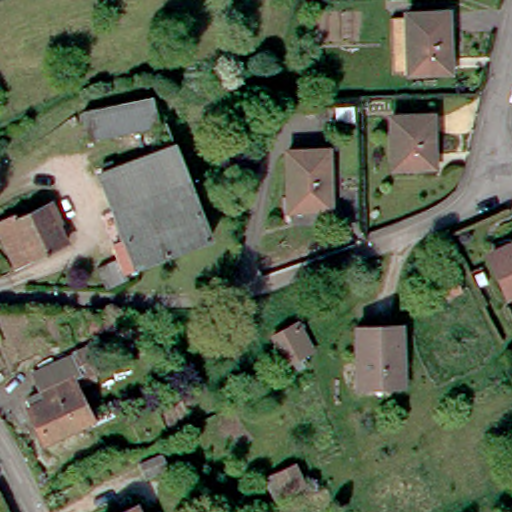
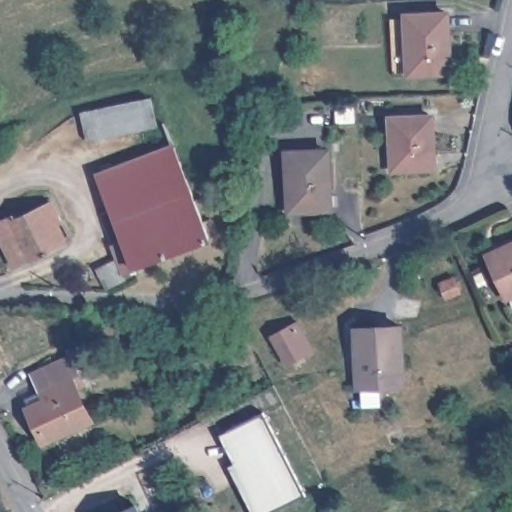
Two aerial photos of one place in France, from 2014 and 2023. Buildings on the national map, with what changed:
unchanged [(417,16),(418,13),(457,11),(460,69),(405,71),(402,16),(417,16)]
unchanged [(87,138),(81,112),(151,94),(157,119),(87,138)]
unchanged [(432,117),(434,166),(394,168),(394,119),(432,117)]
unchanged [(177,140),(192,181),(117,212),(100,170),(177,140)]
unchanged [(328,150),(330,206),(290,208),(289,152),(328,150)]
unchanged [(192,181),(202,211),(127,239),(117,212),(192,181)]
unchanged [(0,235),(0,222),(13,216),(15,219),(52,201),(60,218),(55,221),(64,242),(16,266),(0,235)]
unchanged [(202,211),(212,239),(129,273),(117,245),(127,240),(127,239),(202,211)]
unchanged [(492,272),(485,254),(512,242),(512,262),(492,272)]
unchanged [(127,280),(107,288),(100,268),(119,259),(127,280)]
unchanged [(503,296),(492,272),(512,262),(512,292),(503,296)]
unchanged [(440,298),(435,287),(451,280),(456,290),(440,298)]
unchanged [(301,314),(317,347),(287,363),(272,331),(301,314)]
unchanged [(115,321),(115,333),(89,333),(89,320),(115,321)]
unchanged [(395,327),(397,387),(354,389),(352,328),(395,327)]
unchanged [(30,404),(26,397),(40,390),(32,372),(70,355),(85,348),(92,366),(79,373),(68,378),(87,423),(45,442),(28,405),(30,404)]
new [(264,413),(303,494),(267,512),(253,512),(230,466),(235,463),(221,434),(264,413)]
demolished [(161,453),(167,466),(144,478),(137,464),(161,453)]
unchanged [(108,512),(130,501),(136,512),(108,512)]
unchanged [(151,512),(142,512),(150,508),(151,512)]

